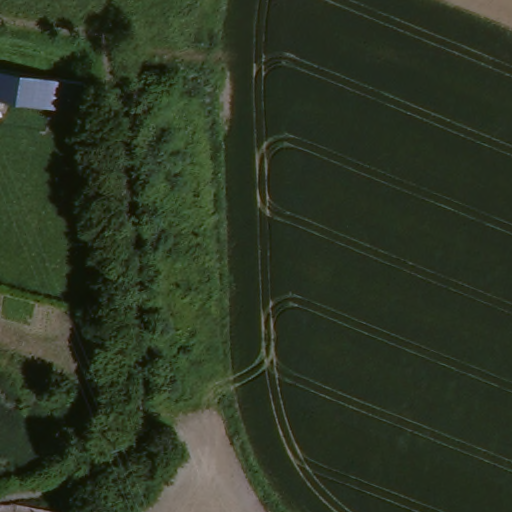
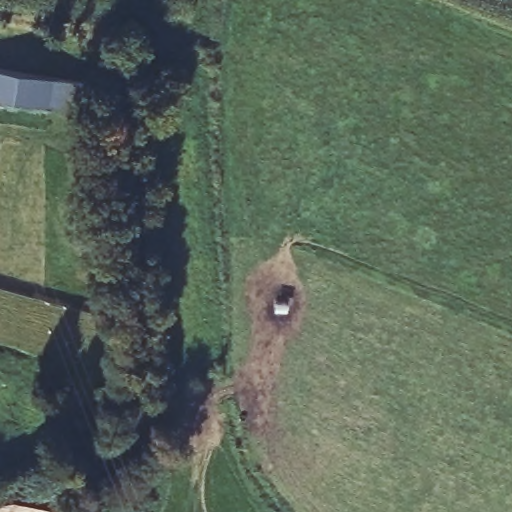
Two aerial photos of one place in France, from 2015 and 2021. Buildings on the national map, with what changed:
unchanged [(74,106),(0,97),(0,65),(77,75),(74,106)]

